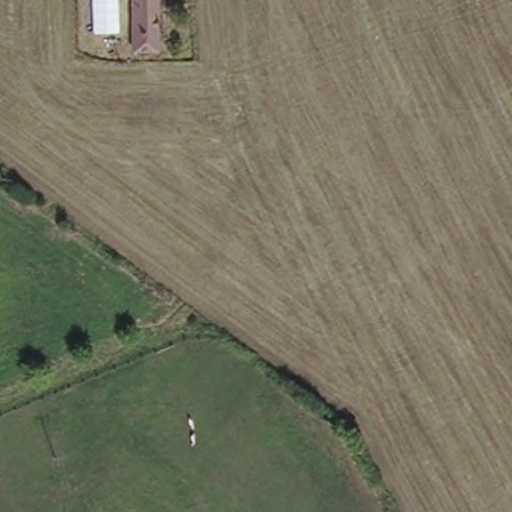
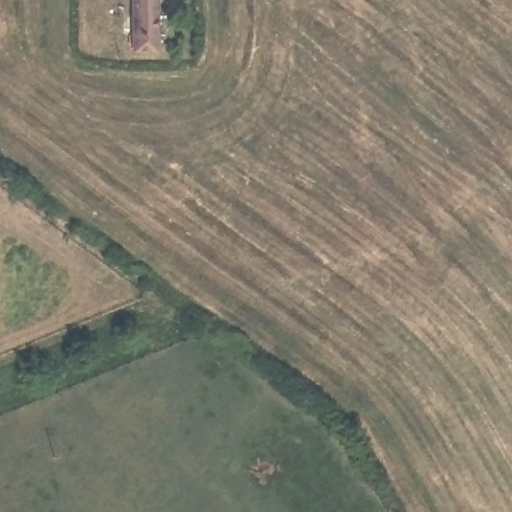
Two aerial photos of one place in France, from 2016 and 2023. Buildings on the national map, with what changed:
unchanged [(129,0),(161,0),(161,4),(160,58),(129,58),(129,0)]

